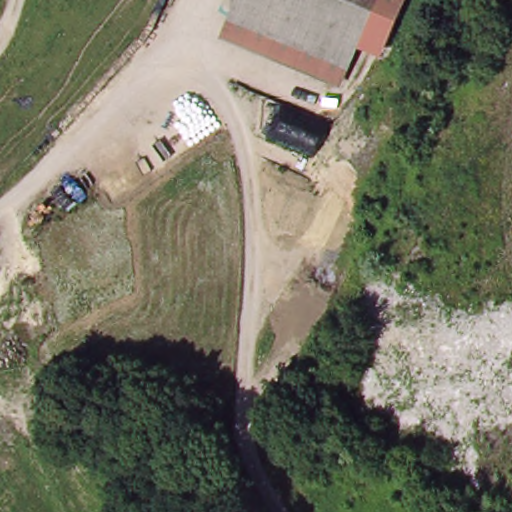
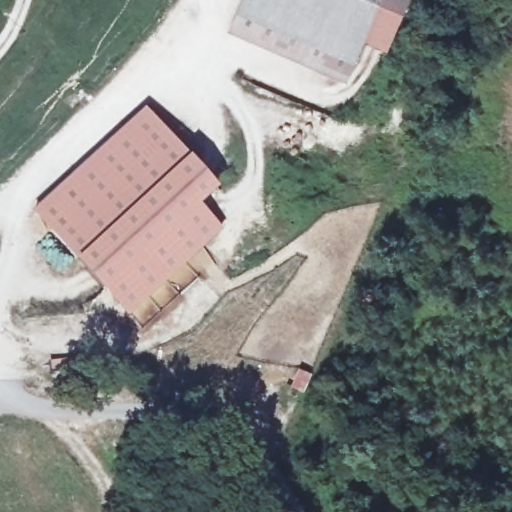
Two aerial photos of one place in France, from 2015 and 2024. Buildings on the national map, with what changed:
unchanged [(239,0),(381,0),(354,63),(234,12),(239,0)]
unchanged [(407,12),(388,0),(411,0),(407,12)]
unchanged [(354,63),(348,79),(225,27),(234,12),(354,63)]
new [(145,119),(217,196),(199,213),(222,237),(132,324),(35,223),(145,119)]

